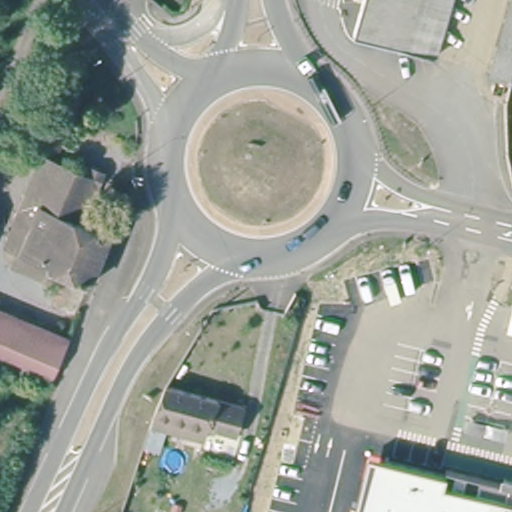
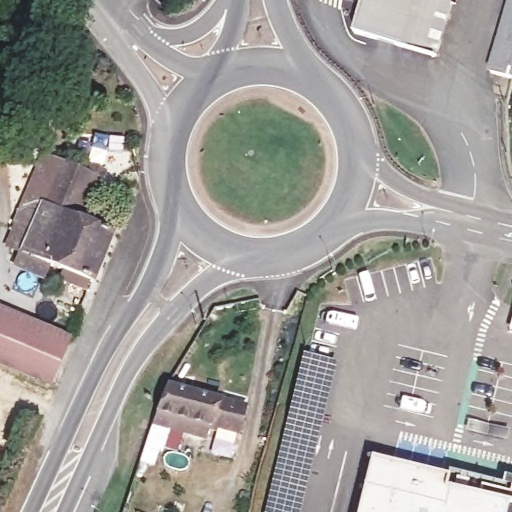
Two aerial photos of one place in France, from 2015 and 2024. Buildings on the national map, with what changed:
unchanged [(355,27),(363,0),(450,0),(436,51),(355,27)]
unchanged [(492,68),(510,0),(512,0),(512,65),(510,74),(492,68)]
unchanged [(510,74),(512,65),(512,74),(510,74)]
unchanged [(94,172),(96,164),(106,168),(86,217),(112,230),(91,280),(47,263),(44,278),(8,263),(17,249),(4,243),(22,194),(40,148),(94,172)]
unchanged [(0,362),(0,308),(70,339),(51,384),(0,362)]
unchanged [(149,420),(155,405),(167,379),(242,404),(235,432),(209,424),(204,438),(149,420)]
unchanged [(370,460),(446,478),(443,489),(453,492),(448,512),(357,512),(370,460)]
unchanged [(453,492),(457,475),(468,478),(461,507),(470,511),(472,509),(470,504),(477,504),(474,512),(448,512),(453,492)]
unchanged [(477,504),(481,484),(510,492),(512,481),(512,512),(474,512),(477,504)]

